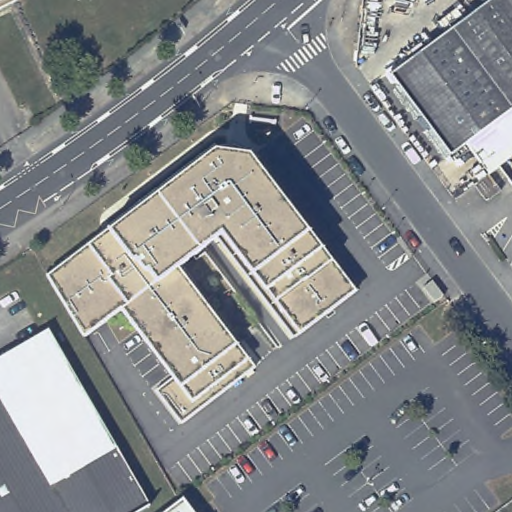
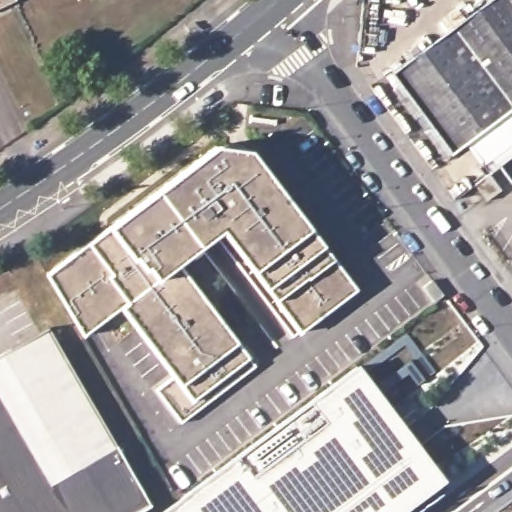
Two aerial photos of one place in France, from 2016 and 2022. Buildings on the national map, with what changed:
unchanged [(0,0),(15,0),(0,7),(0,0)]
unchanged [(512,0),(512,112),(455,155),(395,74),(493,0),(512,0)]
unchanged [(251,150),(308,229),(335,258),(358,290),(300,334),(275,300),(252,272),(223,232),(179,264),(236,343),(255,367),(181,423),(157,389),(171,376),(122,309),(84,339),(46,275),(88,245),(109,228),(216,145),(251,150)]
unchanged [(488,174),(500,190),(486,201),(474,184),(488,174)]
unchanged [(117,449),(52,483),(0,391),(0,356),(48,328),(117,449)]
new [(445,483),(406,512),(162,512),(357,364),(445,483)]
unchanged [(117,449),(149,504),(135,512),(0,512),(0,391),(52,483),(117,449)]
demolished [(176,499),(181,496),(194,512),(160,512),(176,499)]

